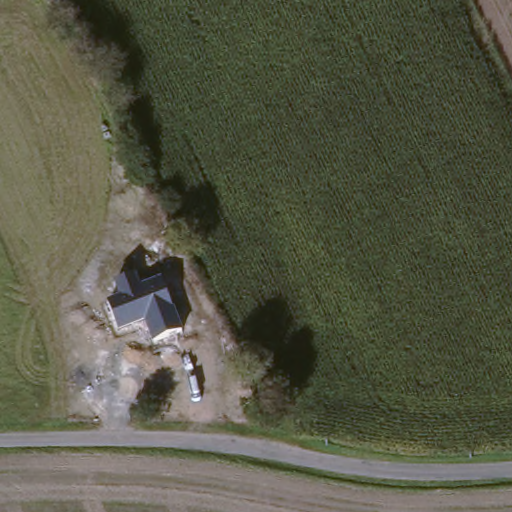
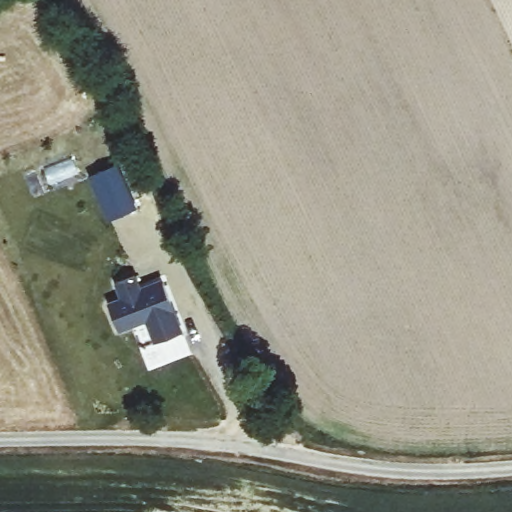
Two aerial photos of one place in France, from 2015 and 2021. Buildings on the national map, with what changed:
new [(138,207),(109,221),(89,175),(119,162),(138,207)]
unchanged [(116,301),(163,277),(176,304),(124,325),(116,301)]

